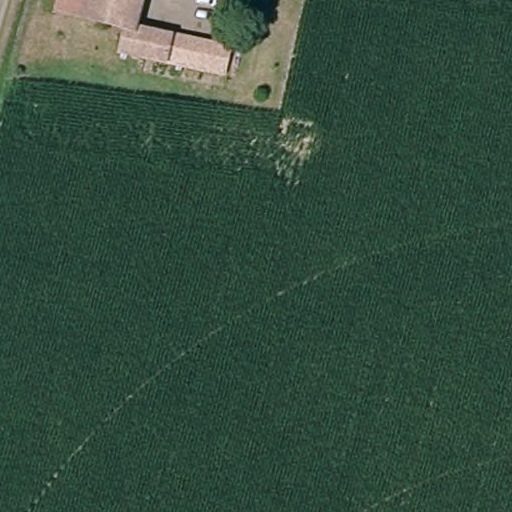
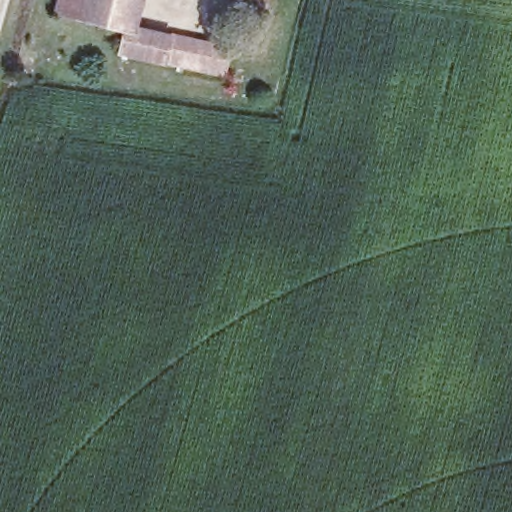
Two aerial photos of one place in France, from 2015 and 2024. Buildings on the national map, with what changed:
unchanged [(62,16),(66,0),(89,0),(85,21),(62,16)]
unchanged [(117,40),(120,28),(85,21),(89,0),(143,0),(136,29),(236,49),(230,76),(127,56),(130,43),(117,40)]

